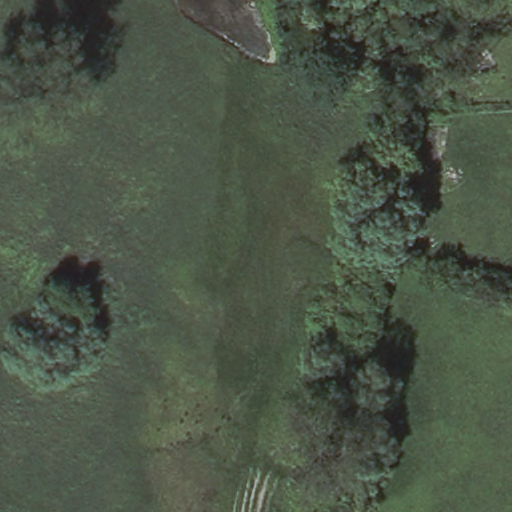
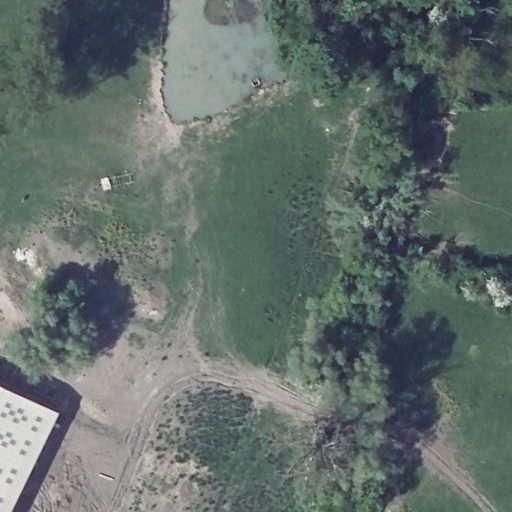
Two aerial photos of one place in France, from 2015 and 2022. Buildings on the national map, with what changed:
new [(64,409),(13,512),(0,512),(0,379),(64,409)]

